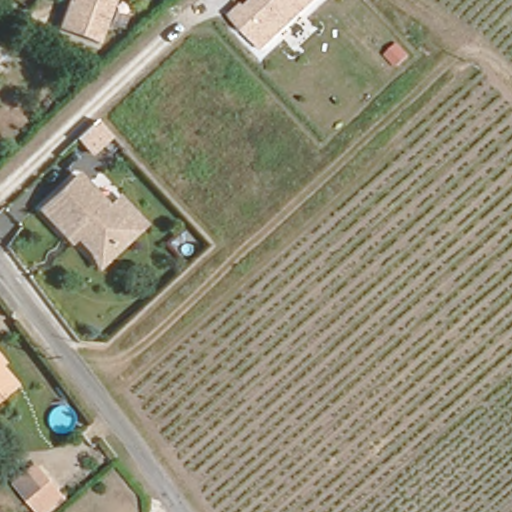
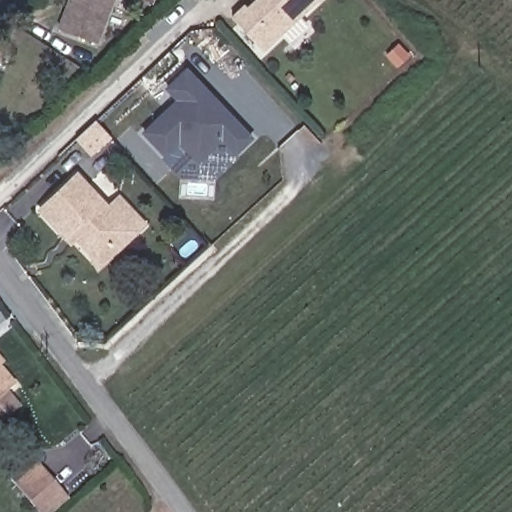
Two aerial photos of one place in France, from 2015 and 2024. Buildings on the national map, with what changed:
unchanged [(69,0),(112,0),(96,42),(58,28),(69,0)]
unchanged [(235,17),(247,5),(250,8),(259,0),(321,0),(266,50),(235,17)]
new [(179,100),(168,88),(188,70),(252,137),(236,152),(223,138),(199,161),(180,141),(166,155),(145,132),(179,100)]
unchanged [(97,120),(111,135),(93,153),(78,138),(97,120)]
unchanged [(88,249),(78,238),(73,243),(67,236),(42,210),(79,176),(110,209),(121,199),(145,225),(133,236),(98,270),(88,249)]
unchanged [(0,399),(0,354),(6,361),(0,366),(17,385),(0,399)]
unchanged [(41,512),(17,484),(40,465),(68,499),(53,512),(41,512)]

